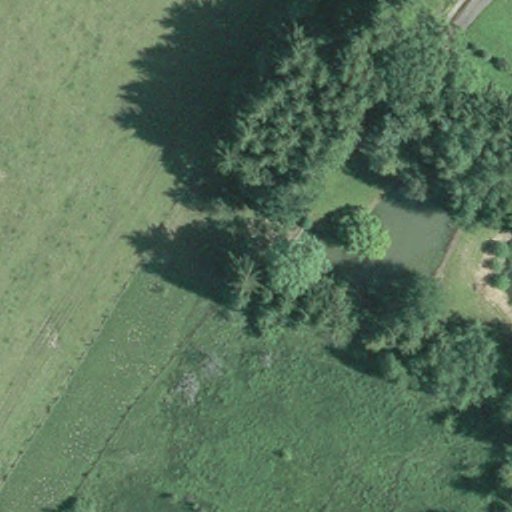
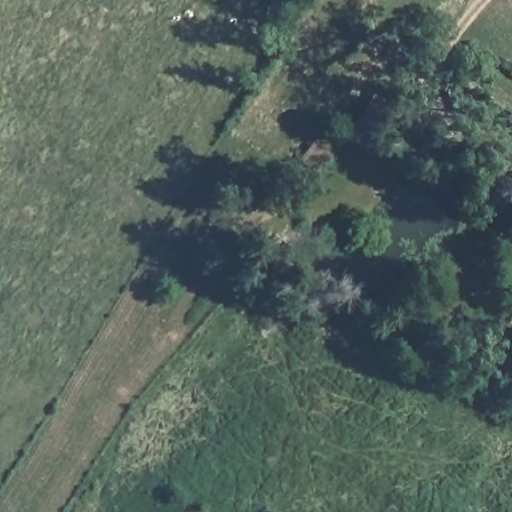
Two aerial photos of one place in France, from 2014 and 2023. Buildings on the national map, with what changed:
unchanged [(359,79),(395,101),(372,139),(348,124),(353,116),(340,109),(359,79)]
unchanged [(315,132),(329,142),(317,157),(304,146),(315,132)]

